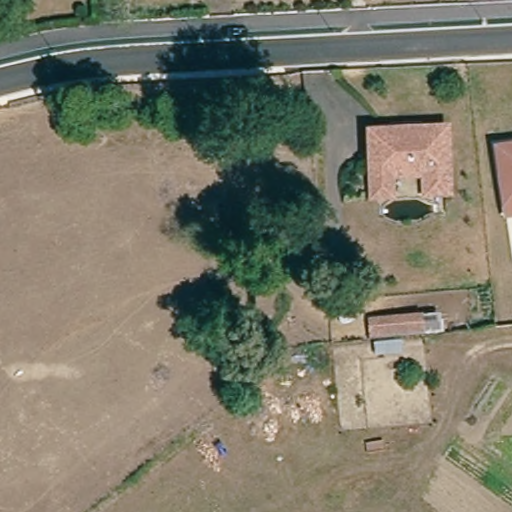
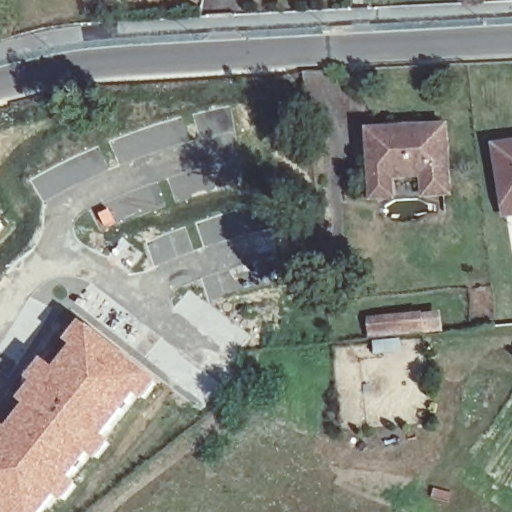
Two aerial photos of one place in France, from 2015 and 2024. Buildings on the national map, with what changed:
unchanged [(368,128),(442,122),(450,205),(425,208),(420,157),(397,158),(400,196),(373,197),(368,128)]
unchanged [(499,197),(494,142),(512,140),(512,209),(500,210),(499,197)]
new [(10,225),(0,236),(0,216),(10,225)]
new [(5,422),(7,423),(20,406),(44,359),(55,367),(84,322),(160,380),(142,402),(137,399),(105,437),(110,442),(73,479),(77,484),(62,503),(57,499),(46,512),(0,512),(0,430),(5,422)]

